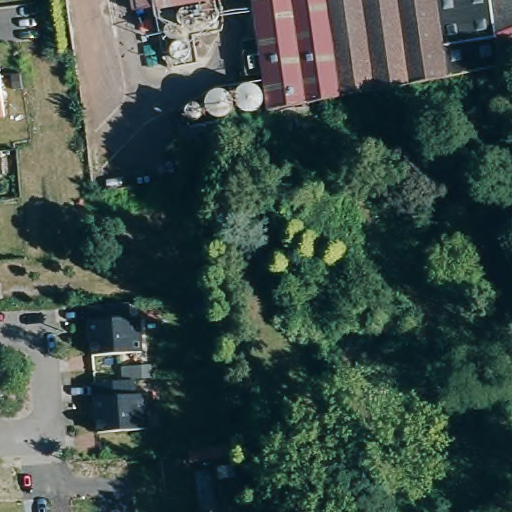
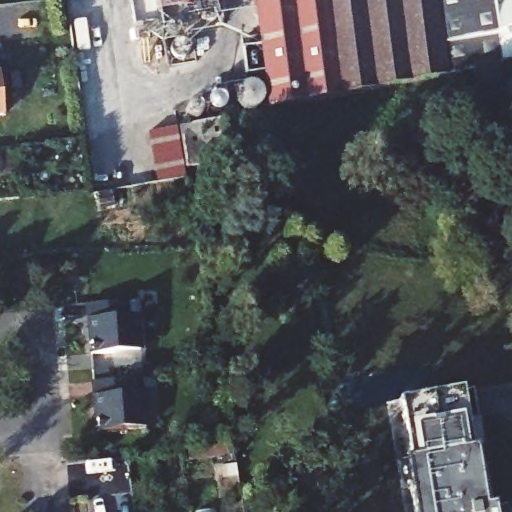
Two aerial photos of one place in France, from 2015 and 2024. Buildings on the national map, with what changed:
unchanged [(220,21),(161,31),(157,4),(156,0),(217,0),(220,21)]
unchanged [(260,29),(256,0),(438,0),(449,74),(276,103),(270,104),(265,67),(246,70),(241,32),(260,29)]
unchanged [(438,0),(496,0),(505,63),(490,67),(449,74),(438,0)]
unchanged [(505,63),(496,0),(512,0),(512,62),(505,63)]
demolished [(237,91),(237,90),(238,89),(238,87),(239,86),(240,86),(240,85),(241,84),(241,83),(242,82),(243,82),(245,82),(245,81),(246,81),(248,81),(249,81),(250,81),(251,81),(252,81),(253,82),(254,82),(255,83),(255,84),(256,85),(257,85),(257,86),(258,87),(258,88),(258,89),(259,91),(259,92),(258,94),(258,95),(258,96),(257,97),(256,99),(255,99),(255,100),(253,101),(252,102),(251,102),(250,102),(248,102),(247,102),(246,102),(245,102),(243,101),(242,101),(241,100),(240,99),(240,97),(239,97),(238,96),(238,95),(237,94),(237,92),(237,91)]
unchanged [(0,116),(0,84),(3,116),(0,116)]
demolished [(207,94),(207,93),(207,92),(207,91),(208,90),(208,89),(210,88),(210,87),(211,87),(212,86),(213,85),(214,85),(215,85),(216,84),(217,84),(218,84),(219,84),(220,85),(221,85),(222,85),(223,86),(224,87),(225,87),(225,88),(226,89),(227,90),(227,91),(227,92),(228,93),(228,94),(228,95),(228,96),(228,97),(227,98),(227,100),(226,100),(226,101),(225,102),(225,103),(224,104),(223,104),(222,105),(221,105),(220,106),(219,106),(218,106),(217,106),(216,106),(215,106),(213,106),(212,105),(211,105),(211,104),(210,103),(210,102),(208,102),(208,101),(207,100),(207,99),(207,97),(207,96),(207,95),(207,94)]
unchanged [(228,139),(202,142),(206,169),(186,172),(185,143),(190,129),(225,122),(228,139)]
unchanged [(106,304),(125,302),(126,317),(136,317),(140,352),(113,353),(91,355),(87,305),(106,304)]
unchanged [(117,381),(130,380),(132,395),(142,394),(145,428),(125,430),(97,432),(93,382),(117,381)]
new [(469,382),(492,512),(417,512),(399,392),(469,382)]

